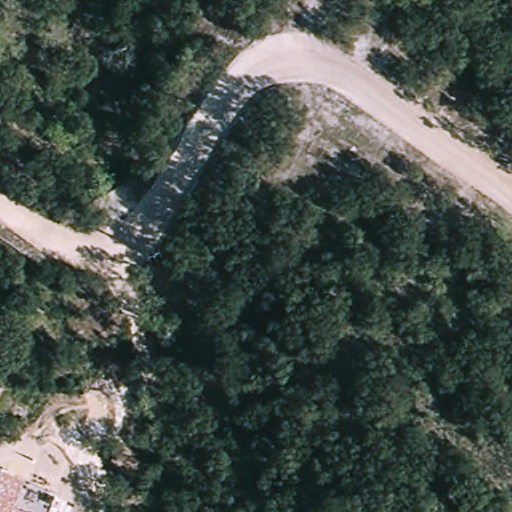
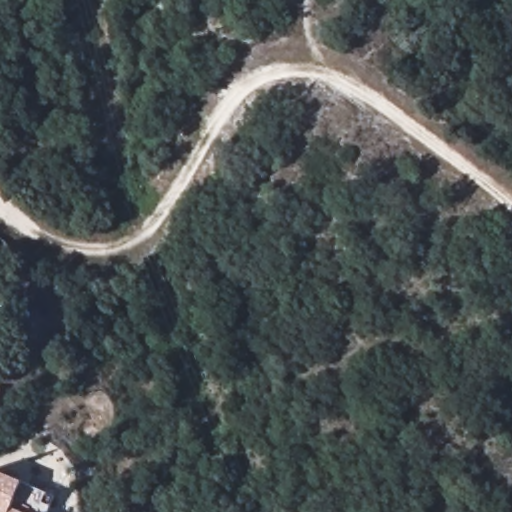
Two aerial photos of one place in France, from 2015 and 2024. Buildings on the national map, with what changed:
unchanged [(46,494),(39,512),(0,512),(0,475),(13,480),(46,494)]

